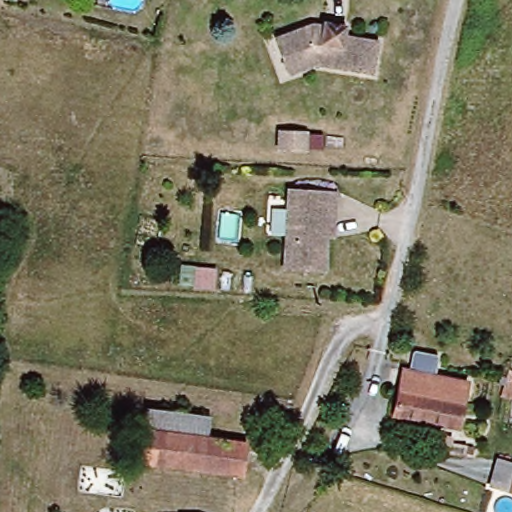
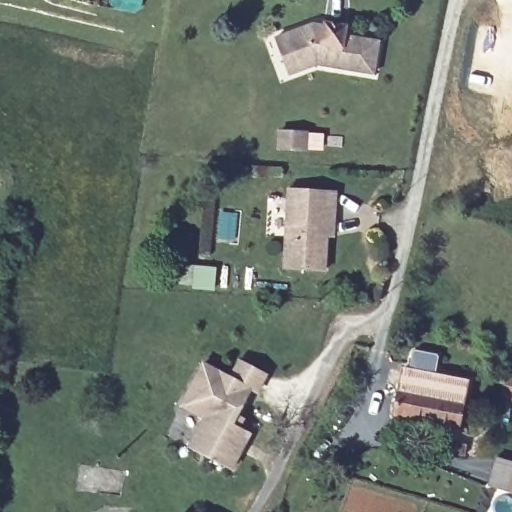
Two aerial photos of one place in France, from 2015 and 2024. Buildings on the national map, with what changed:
unchanged [(315,21),(339,22),(338,33),(381,43),(374,75),(317,64),(301,70),(288,75),(278,33),(293,30),(315,21)]
unchanged [(318,146),(291,144),(292,128),(320,130),(318,146)]
unchanged [(286,269),(297,191),(340,196),(338,213),(338,241),(329,241),(326,274),(286,269)]
unchanged [(228,276),(206,276),(208,252),(231,254),(228,276)]
new [(228,378),(237,358),(268,373),(258,394),(252,391),(234,426),(251,434),(232,470),(185,449),(199,420),(177,409),(201,362),(228,378)]
unchanged [(410,360),(474,371),(471,388),(407,377),(410,360)]
unchanged [(511,371),(512,371),(512,400),(504,399),(511,371)]
unchanged [(471,388),(465,419),(401,408),(407,377),(471,388)]
unchanged [(474,448),(455,446),(458,432),(478,436),(474,448)]
demolished [(144,462),(148,435),(204,442),(246,447),(242,475),(144,462)]
unchanged [(500,463),(512,465),(512,494),(493,490),(500,463)]

